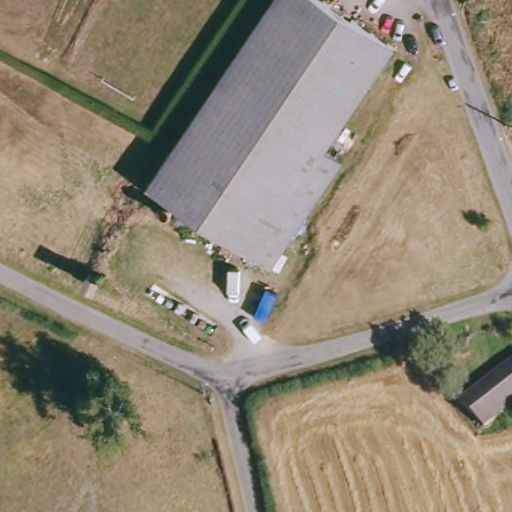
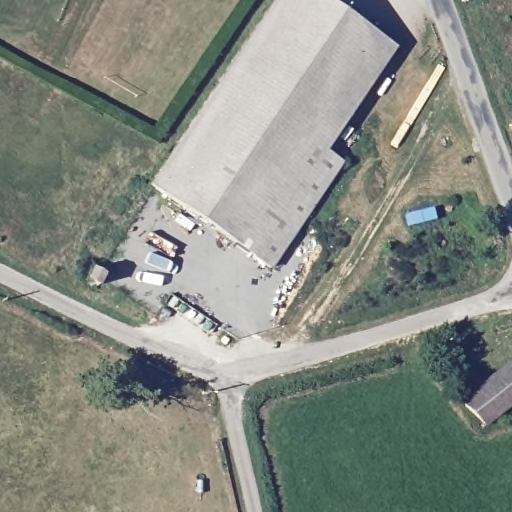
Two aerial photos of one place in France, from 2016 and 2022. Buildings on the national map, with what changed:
unchanged [(334,153),(351,165),(278,269),(205,220),(197,232),(168,214),(176,201),(157,188),(285,0),(331,0),(404,49),(334,153)]
unchanged [(90,273),(100,278),(95,288),(84,284),(90,273)]
unchanged [(469,404),(501,376),(494,364),(512,350),(512,415),(508,419),(492,432),(483,421),(469,404)]

